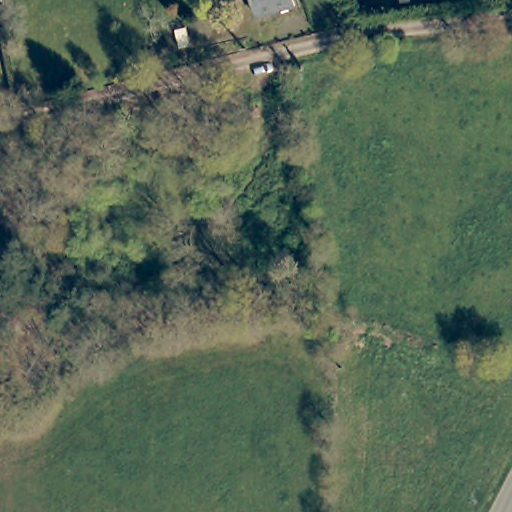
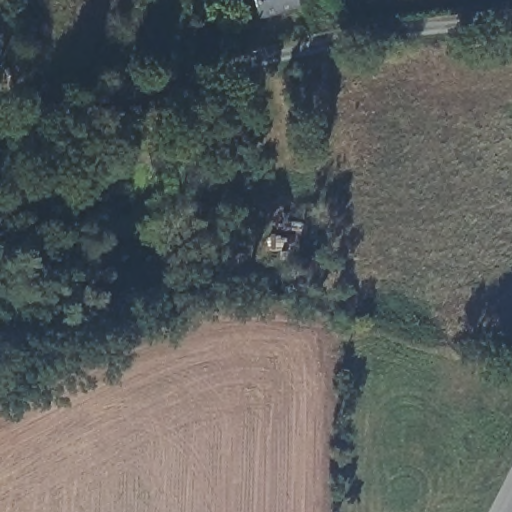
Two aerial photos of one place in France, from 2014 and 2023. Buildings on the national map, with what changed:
unchanged [(297,5),(258,16),(254,0),(296,0),(297,5)]

